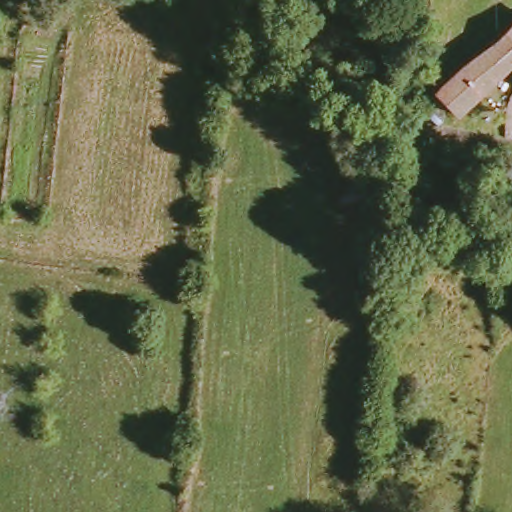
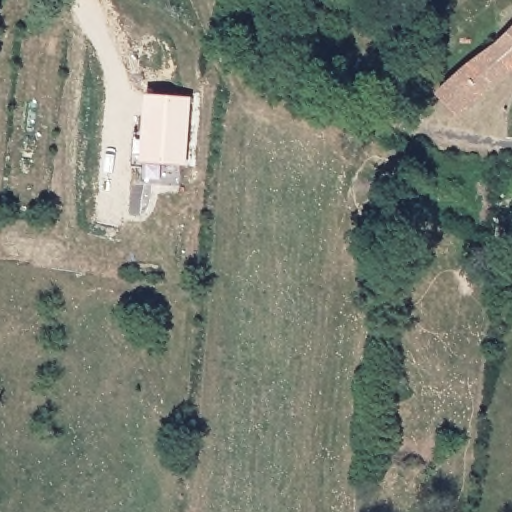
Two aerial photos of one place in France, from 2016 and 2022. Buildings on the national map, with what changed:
unchanged [(437,90),(485,52),(512,25),(512,74),(459,116),(437,90)]
new [(144,93),(191,97),(186,166),(139,162),(144,93)]

